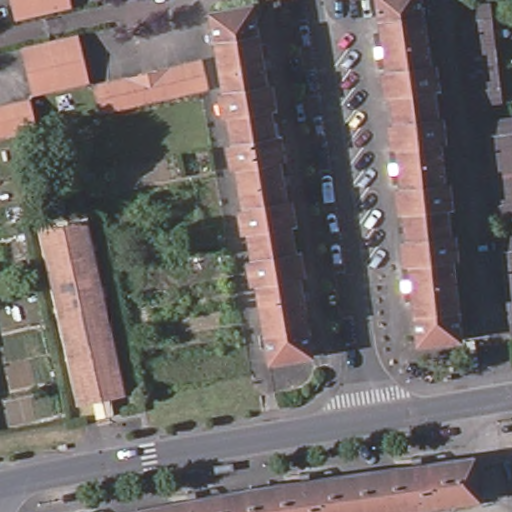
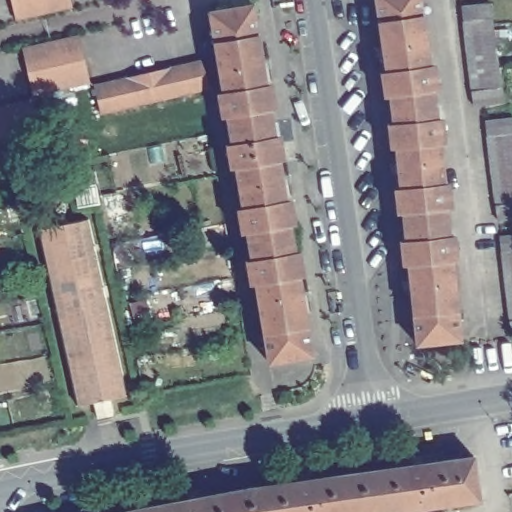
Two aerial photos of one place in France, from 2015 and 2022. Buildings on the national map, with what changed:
unchanged [(69,0),(71,10),(44,16),(16,23),(13,9),(11,0),(69,0)]
unchanged [(393,116),(381,38),(375,0),(421,0),(436,109),(393,116)]
unchanged [(473,92),(471,78),(469,64),(468,50),(467,36),(465,21),(464,8),(493,4),(494,18),(497,33),(498,48),(499,60),(501,75),(502,89),(504,103),(474,106),(473,92)]
unchanged [(274,124),(230,131),(210,14),(254,6),(274,124)]
unchanged [(26,65),(23,50),(50,44),(78,39),(81,53),(84,68),(88,84),(61,91),(33,99),(30,81),(26,65)]
unchanged [(123,81),(138,78),(154,74),(170,71),(186,67),(199,64),(203,63),(209,91),(204,93),(193,95),(176,99),(161,103),(146,106),(131,109),(116,113),(100,116),(93,89),(108,85),(123,81)]
unchanged [(14,106),(30,103),(36,132),(21,135),(6,139),(0,140),(0,110),(14,106)]
unchanged [(448,229),(406,234),(393,116),(436,109),(448,229)]
unchanged [(494,194),(493,179),(492,165),(490,151),(488,136),(487,123),(512,120),(512,220),(498,222),(496,208),(494,194)]
unchanged [(293,239),(251,247),(230,131),(274,124),(293,239)]
unchanged [(92,403),(75,407),(37,233),(88,222),(126,396),(112,399),(116,418),(96,422),(92,403)]
unchanged [(460,344),(418,349),(413,306),(406,234),(448,229),(460,344)]
unchanged [(507,309),(506,295),(504,280),(502,267),(501,253),(499,239),(512,238),(512,337),(511,338),(509,324),(507,309)]
unchanged [(271,364),(251,247),(293,239),(306,314),(313,357),(271,364)]
unchanged [(478,506),(426,512),(134,512),(231,492),(389,470),(474,458),(478,506)]

